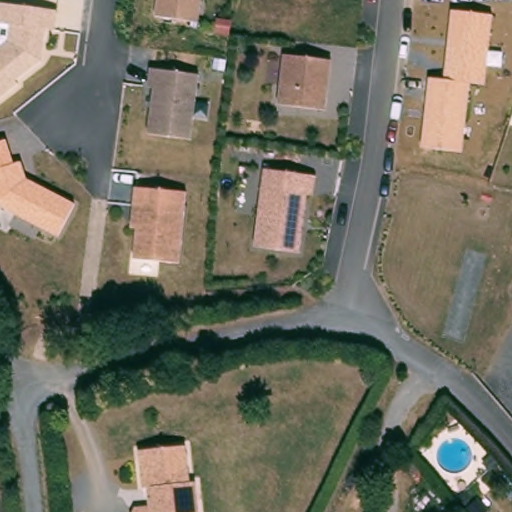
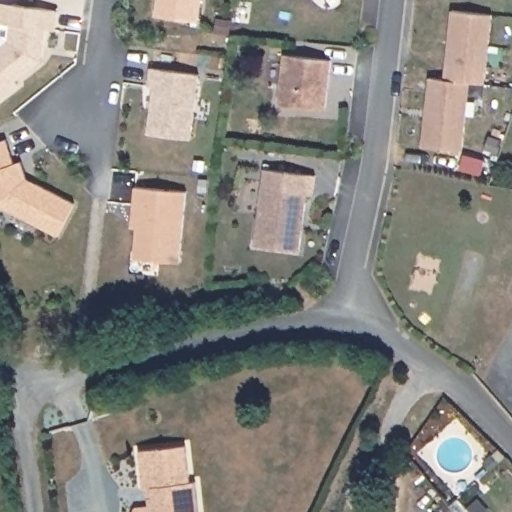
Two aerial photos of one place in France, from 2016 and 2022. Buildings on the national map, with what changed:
unchanged [(160,18),(163,0),(206,0),(203,23),(160,18)]
unchanged [(13,43),(15,26),(0,24),(2,4),(17,6),(62,11),(60,31),(51,30),(47,61),(21,82),(24,85),(0,105),(0,53),(13,43)]
unchanged [(490,16),(483,85),(469,84),(462,152),(420,148),(428,77),(443,78),(450,12),(490,16)]
unchanged [(281,54),(328,61),(321,110),(274,104),(281,54)]
unchanged [(204,76),(195,141),(153,135),(160,89),(154,88),(156,70),(204,76)]
unchanged [(12,142),(19,166),(26,164),(34,188),(39,190),(41,186),(80,206),(64,238),(2,206),(0,199),(0,146),(12,142)]
unchanged [(269,170),(320,176),(317,196),(311,195),(304,253),(259,247),(269,170)]
unchanged [(193,193),(187,264),(142,260),(144,229),(139,229),(141,206),(142,188),(193,193)]
unchanged [(143,486),(141,448),(188,445),(191,481),(196,481),(199,512),(133,512),(135,508),(149,507),(148,485),(143,486)]

